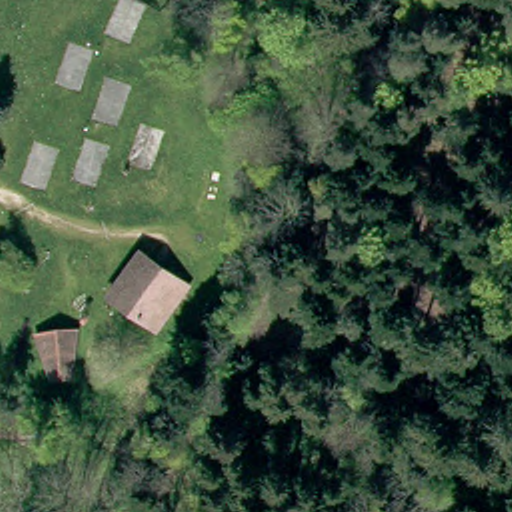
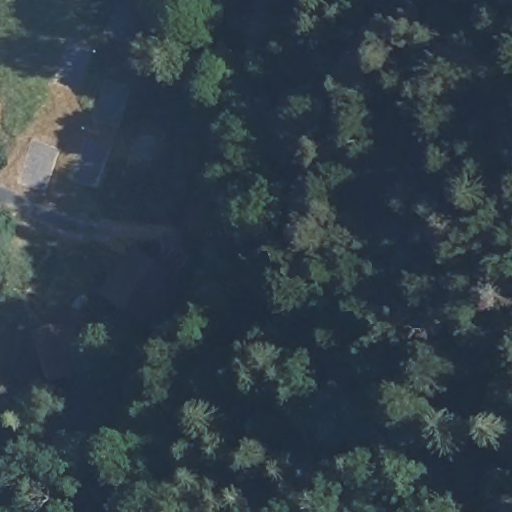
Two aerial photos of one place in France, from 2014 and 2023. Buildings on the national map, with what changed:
unchanged [(141,254),(189,286),(185,292),(158,330),(154,328),(111,297),(134,264),(141,254)]
unchanged [(70,356),(70,371),(53,373),(47,360),(37,336),(71,327),(70,356)]

